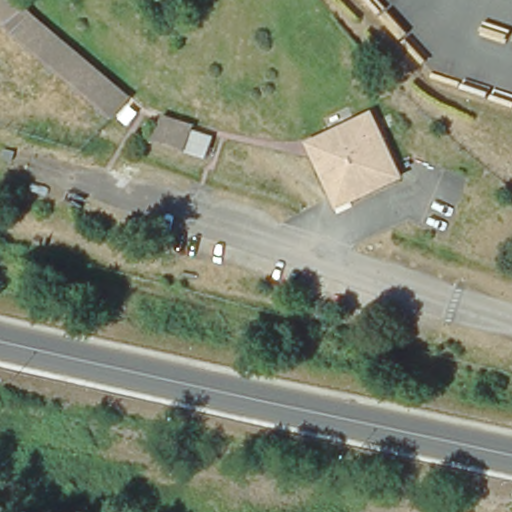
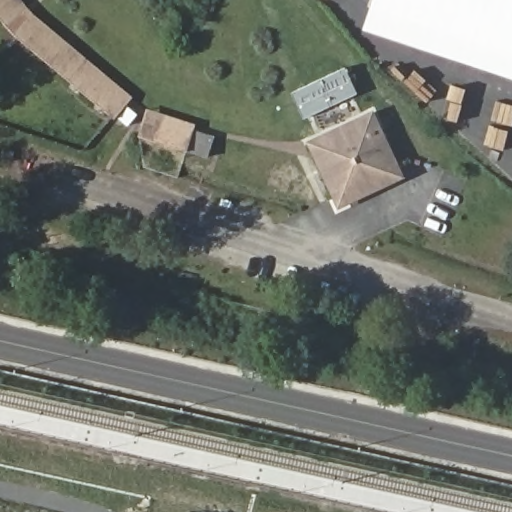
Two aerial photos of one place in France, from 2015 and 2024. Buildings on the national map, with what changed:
unchanged [(30,17),(129,101),(105,129),(4,44),(0,39),(0,0),(15,0),(24,11),(30,17)]
new [(371,4),(373,0),(512,0),(512,79),(363,30),(371,4)]
new [(291,92),(346,67),(358,94),(302,118),(291,92)]
unchanged [(190,123),(189,130),(210,136),(199,162),(177,155),(146,145),(160,114),(190,123)]
unchanged [(373,117),(402,181),(335,215),(305,151),(373,117)]

